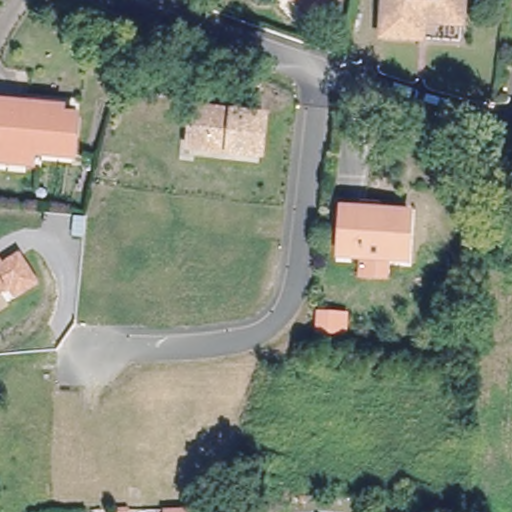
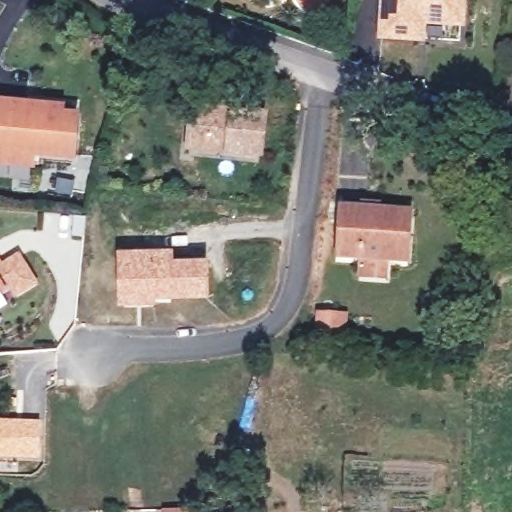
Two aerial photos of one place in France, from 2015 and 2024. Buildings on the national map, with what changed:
unchanged [(297,4),(293,0),(302,0),(297,4)]
unchanged [(460,26),(421,23),(420,40),(381,38),(384,0),(462,0),(460,26)]
unchanged [(97,78),(90,72),(100,60),(107,66),(97,78)]
unchanged [(71,154),(32,151),(31,161),(0,159),(0,99),(60,102),(60,111),(75,112),(71,154)]
unchanged [(258,156),(204,149),(189,147),(194,110),(208,112),(263,119),(258,156)]
unchanged [(340,256),(343,209),(403,214),(410,215),(409,236),(407,261),(340,256)]
new [(175,250),(175,260),(209,260),(210,299),(175,301),(147,306),(117,307),(116,251),(175,250)]
unchanged [(2,262),(20,251),(40,283),(15,299),(7,291),(0,296),(0,258),(2,262)]
unchanged [(352,311),(351,332),(318,330),(319,310),(352,311)]
demolished [(107,445),(104,418),(157,412),(160,438),(107,445)]
new [(35,424),(35,454),(0,454),(0,424),(35,424)]
unchanged [(203,512),(167,512),(166,510),(202,508),(203,512)]

